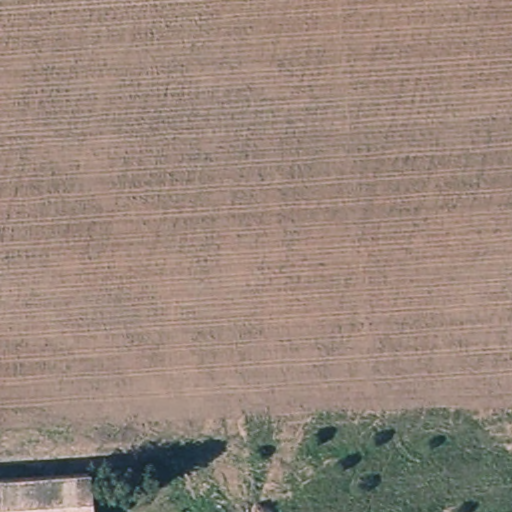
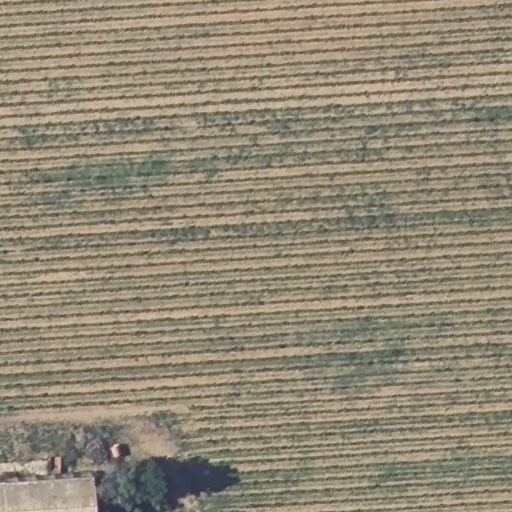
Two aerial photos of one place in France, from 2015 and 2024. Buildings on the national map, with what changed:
unchanged [(96,477),(98,512),(0,512),(0,483),(96,477)]

